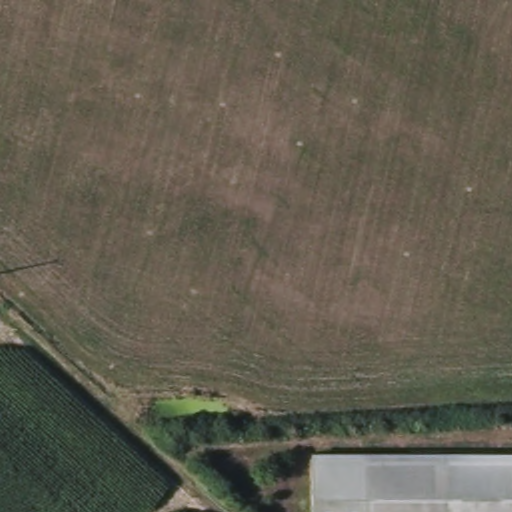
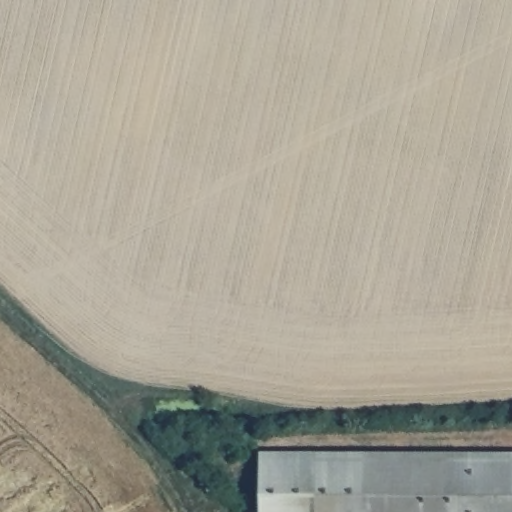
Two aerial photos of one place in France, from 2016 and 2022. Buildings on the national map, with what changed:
new [(260,450),(320,449),(320,512),(259,512),(260,450)]
unchanged [(320,449),(373,450),(512,452),(512,512),(320,512),(320,449)]

